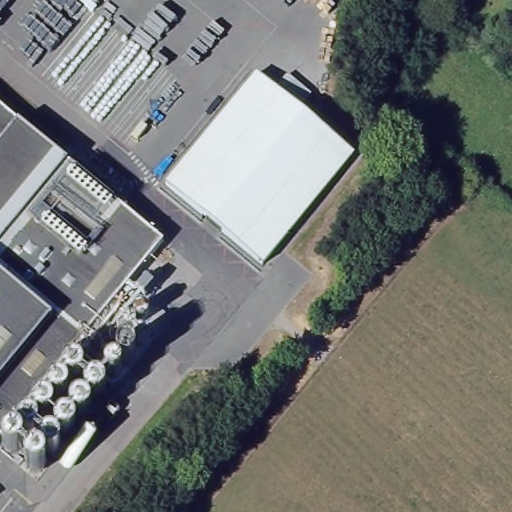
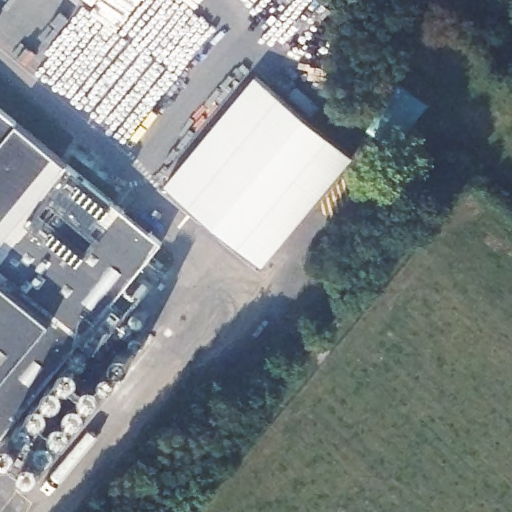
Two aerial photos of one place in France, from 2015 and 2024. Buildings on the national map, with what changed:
unchanged [(353,150),(262,261),(165,180),(257,70),(353,150)]
unchanged [(75,346),(116,377),(33,474),(0,449),(0,101),(165,237),(75,346)]
unchanged [(136,288),(145,277),(152,283),(143,294),(136,288)]
unchanged [(122,325),(122,324),(122,323),(122,322),(122,321),(123,321),(123,320),(124,320),(125,319),(126,318),(127,318),(128,318),(129,318),(130,318),(131,319),(132,319),(132,320),(133,320),(133,321),(134,321),(135,322),(135,323),(135,324),(135,325),(135,326),(135,327),(134,327),(134,328),(133,328),(133,329),(132,329),(132,330),(131,330),(130,330),(130,331),(129,331),(128,331),(127,331),(126,331),(126,330),(125,330),(125,329),(124,329),(123,329),(123,328),(122,327),(122,326),(122,325)]

